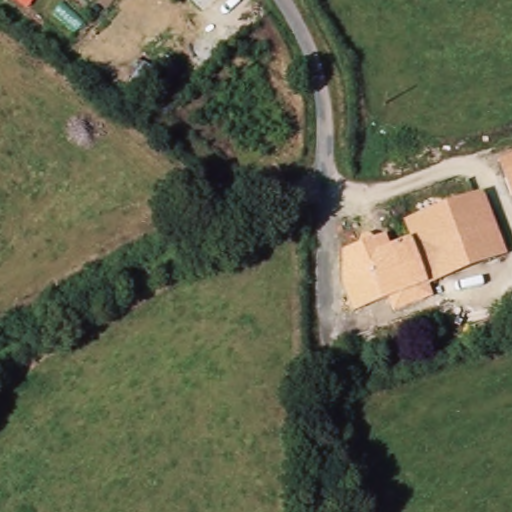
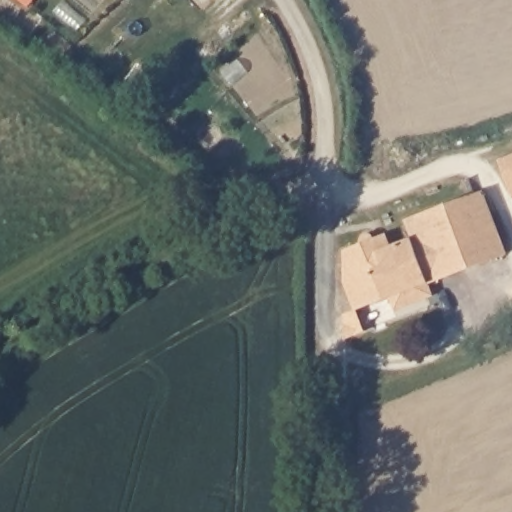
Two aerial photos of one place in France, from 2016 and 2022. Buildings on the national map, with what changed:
unchanged [(496,206),(487,207),(507,255),(433,278),(412,221),(492,192),(496,206)]
unchanged [(370,250),(371,258),(409,244),(422,283),(357,303),(339,303),(340,271),(341,248),(370,250)]

